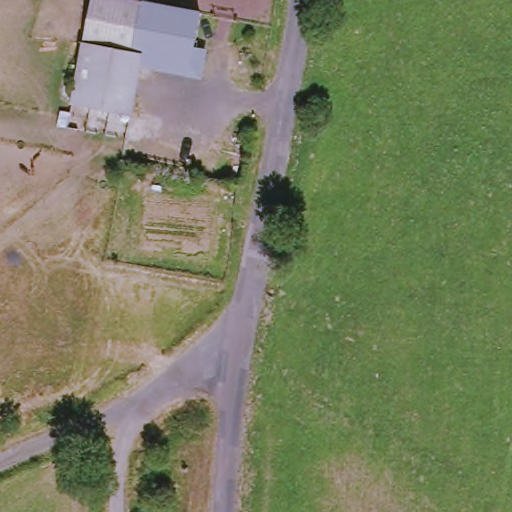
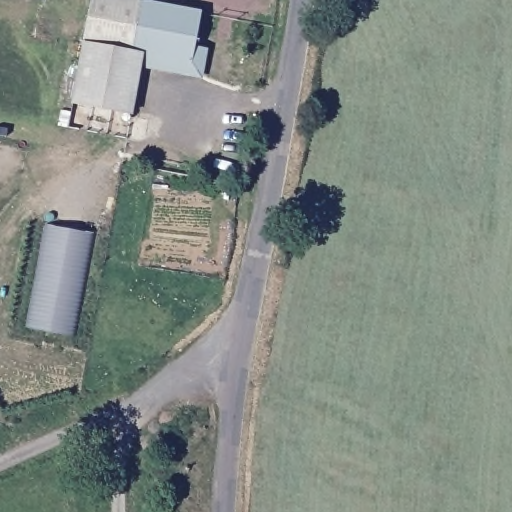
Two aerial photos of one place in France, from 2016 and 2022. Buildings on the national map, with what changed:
unchanged [(140,23),(166,28),(159,58),(146,56),(145,62),(136,115),(74,104),(95,0),(132,0),(144,2),(140,23)]
unchanged [(144,2),(203,13),(191,72),(145,62),(146,56),(159,58),(166,28),(140,23),(144,2)]
new [(46,226),(96,235),(76,338),(26,329),(46,226)]

